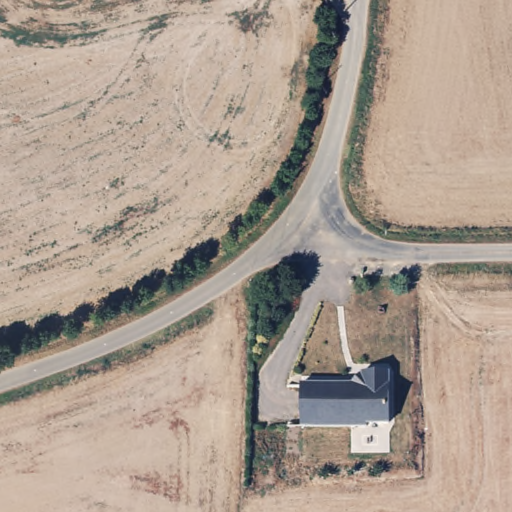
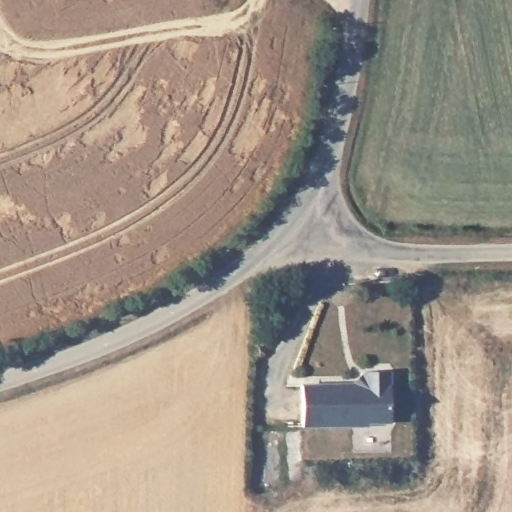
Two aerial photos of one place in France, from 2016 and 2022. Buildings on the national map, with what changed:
unchanged [(392,420),(369,421),(370,423),(306,426),(304,384),(365,382),(364,370),(390,369),(392,420)]

